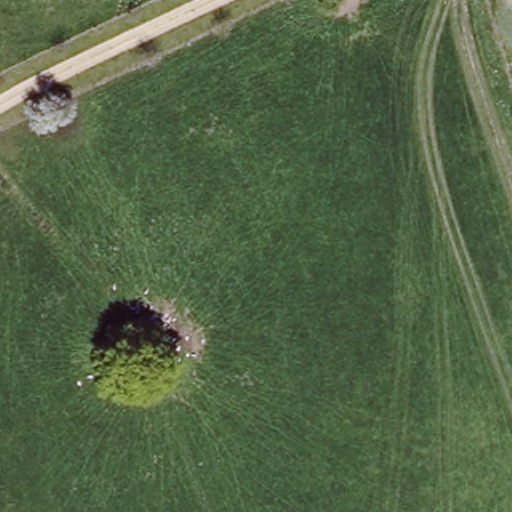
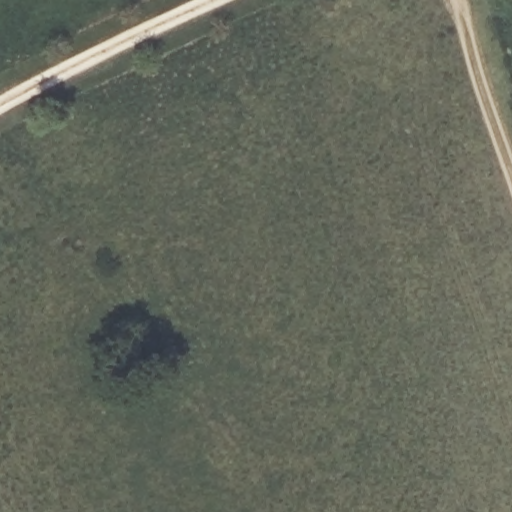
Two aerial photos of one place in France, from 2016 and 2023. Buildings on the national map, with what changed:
[]

